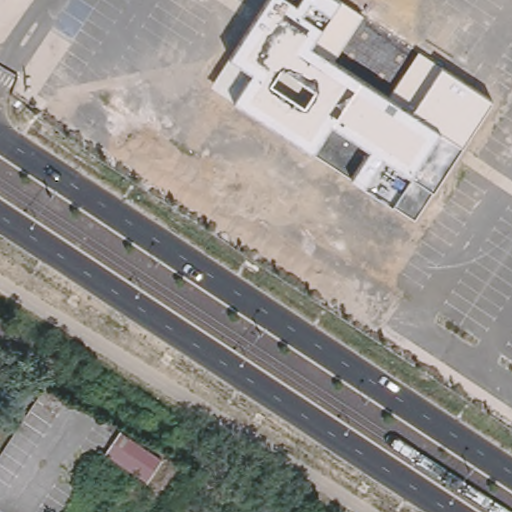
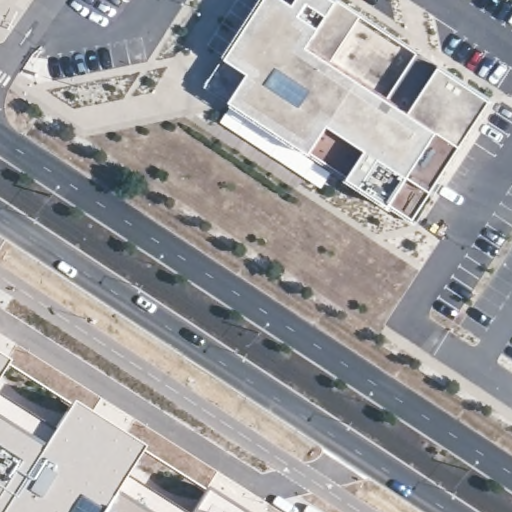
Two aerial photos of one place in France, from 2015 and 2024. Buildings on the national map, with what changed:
unchanged [(432,188),(414,218),(391,203),(351,177),(314,150),(233,100),(210,87),(231,56),(265,0),(340,0),(363,17),(333,63),(387,98),(419,52),(443,66),(491,100),(462,145),(432,188)]
new [(7,363),(0,374),(0,359),(7,363)]
new [(52,432),(70,403),(142,448),(123,476),(180,512),(0,512),(0,400),(52,432)]
new [(204,489),(240,512),(191,512),(204,489)]

